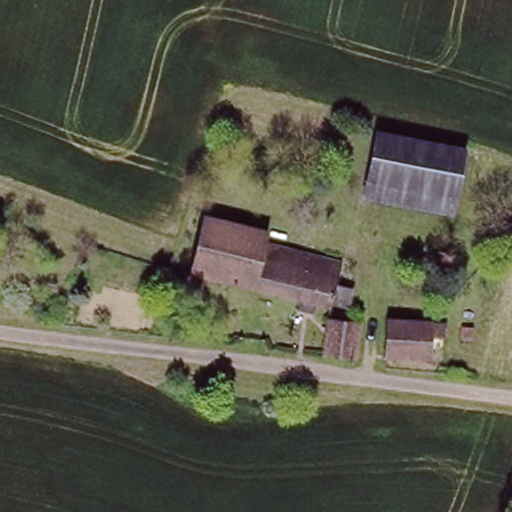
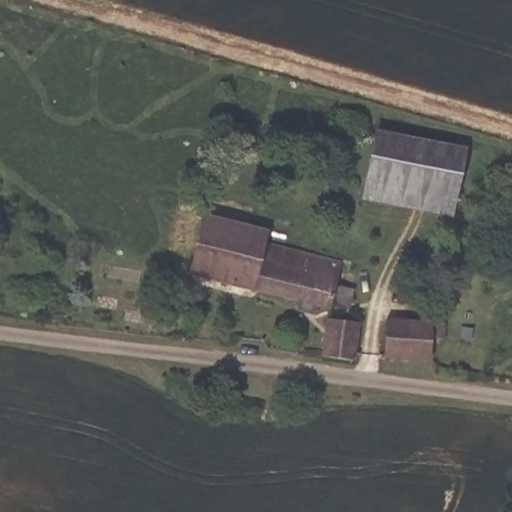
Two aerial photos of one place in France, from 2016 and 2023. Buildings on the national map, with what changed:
unchanged [(366,181),(345,177),(357,126),(377,130),(366,181)]
unchanged [(366,181),(377,130),(465,148),(453,210),(363,193),(366,181)]
unchanged [(196,273),(208,222),(269,237),(267,245),(344,264),(339,284),(356,288),(351,307),(334,303),(333,308),(317,304),(313,314),(302,311),(304,300),(196,273)]
unchanged [(328,352),(334,315),(362,319),(357,356),(328,352)]
unchanged [(446,359),(389,357),(391,321),(447,323),(446,359)]
unchanged [(470,327),(469,338),(459,337),(461,326),(470,327)]

